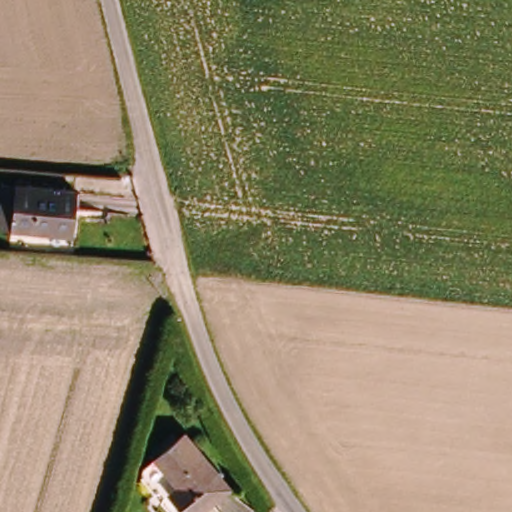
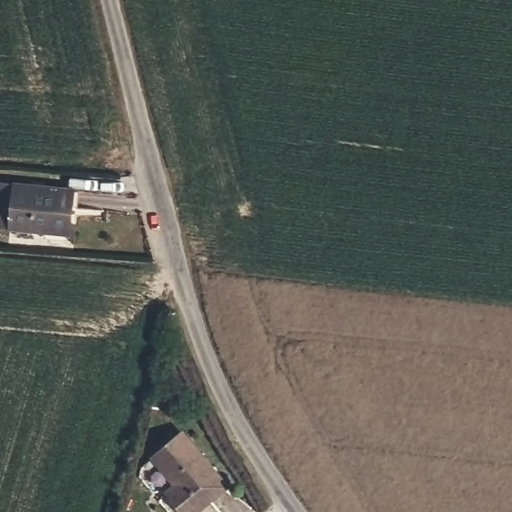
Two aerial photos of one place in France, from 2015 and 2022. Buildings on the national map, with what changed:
unchanged [(79,192),(74,238),(7,233),(12,187),(79,192)]
unchanged [(229,483),(195,512),(181,512),(164,494),(177,483),(154,456),(185,429),(229,483)]

